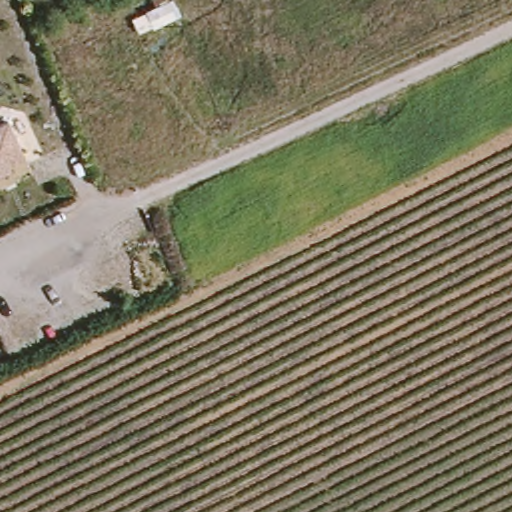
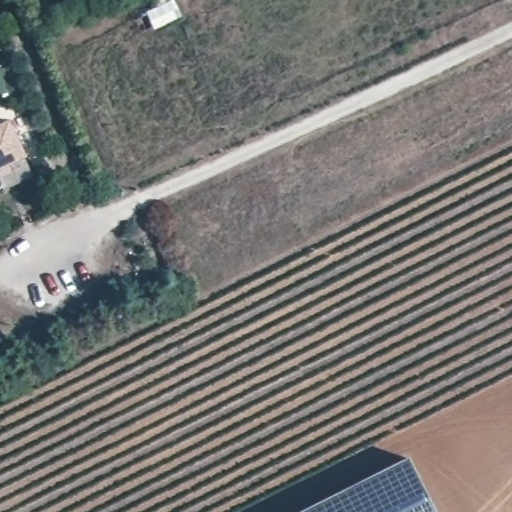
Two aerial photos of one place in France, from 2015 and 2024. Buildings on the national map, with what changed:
unchanged [(19,157),(0,166),(0,124),(3,122),(19,157)]
new [(436,512),(294,512),(406,455),(436,512)]

